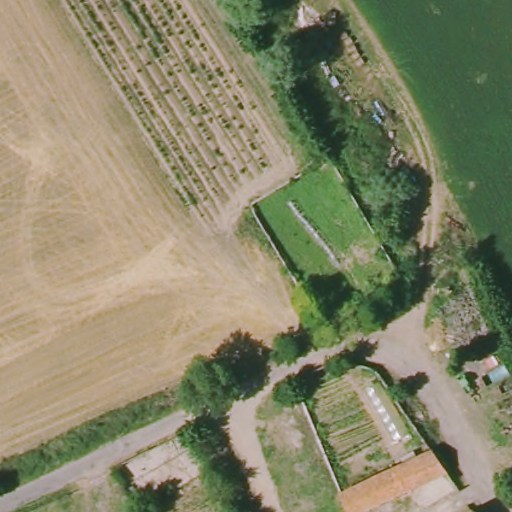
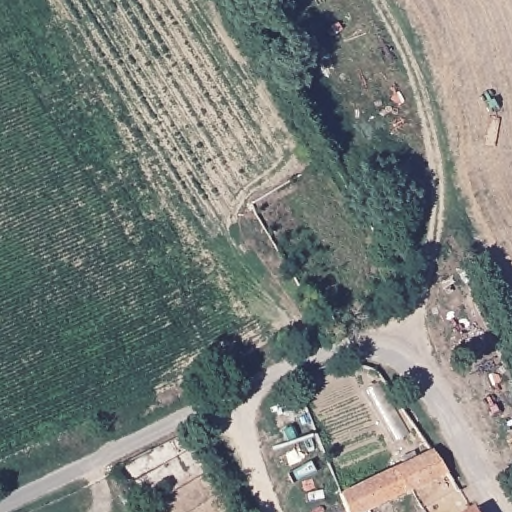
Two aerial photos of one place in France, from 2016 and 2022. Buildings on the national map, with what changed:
unchanged [(444,473),(357,512),(340,512),(332,496),(429,449),(442,472),(444,473)]
unchanged [(468,512),(469,511),(470,512),(468,512)]

